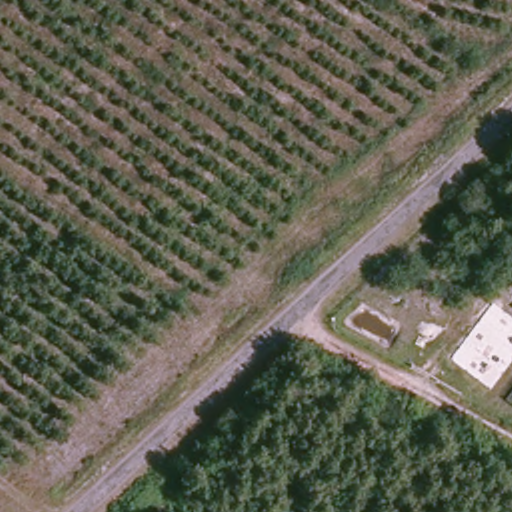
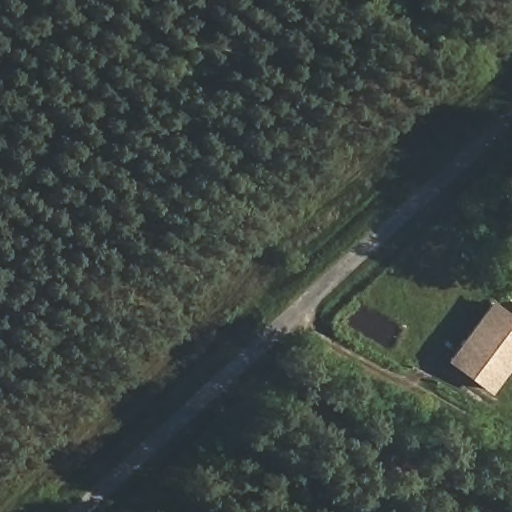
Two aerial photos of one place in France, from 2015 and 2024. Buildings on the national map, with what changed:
new [(491,392),(446,361),(492,299),(512,314),(512,363),(491,392)]

